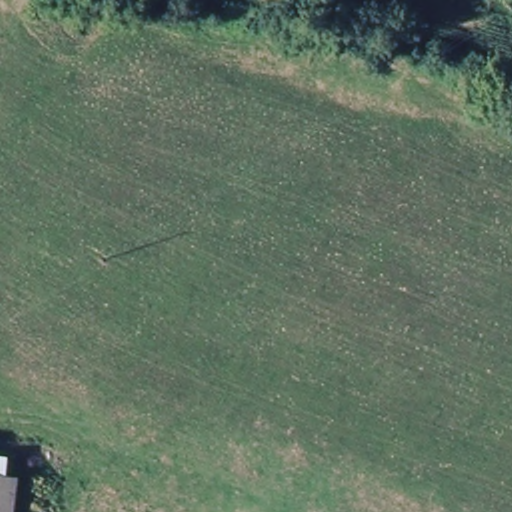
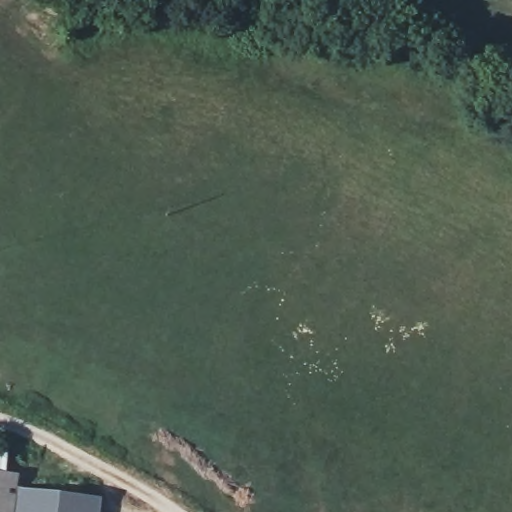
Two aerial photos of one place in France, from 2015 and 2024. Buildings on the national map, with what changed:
unchanged [(7,475),(22,477),(17,512),(0,512),(0,456),(10,457),(7,475)]
new [(17,512),(20,488),(101,499),(99,512),(17,512)]

